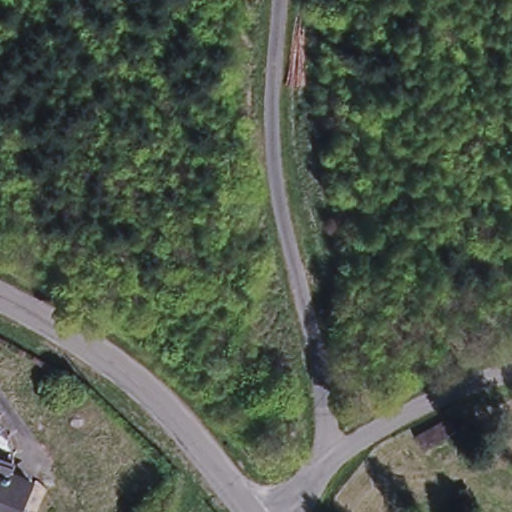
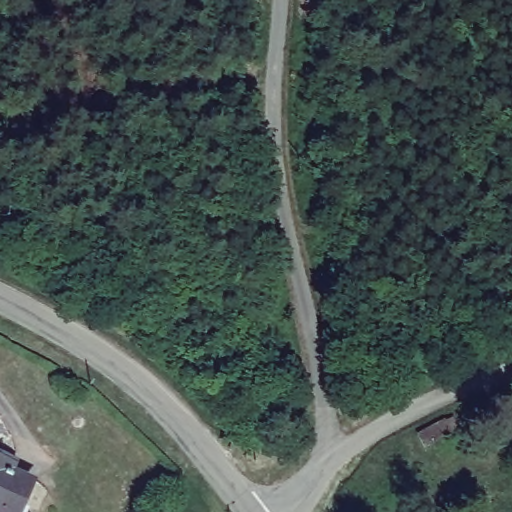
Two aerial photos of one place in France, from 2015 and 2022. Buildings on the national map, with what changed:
unchanged [(453,427),(418,445),(413,434),(447,416),(453,427)]
unchanged [(463,423),(467,430),(456,435),(453,428),(463,423)]
unchanged [(7,471),(29,481),(16,512),(0,512),(0,456),(12,461),(7,471)]

